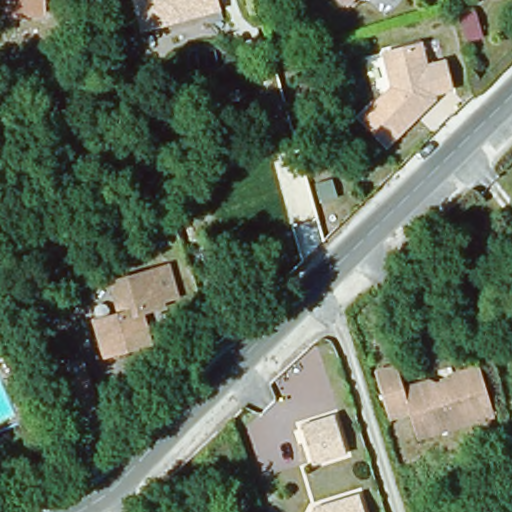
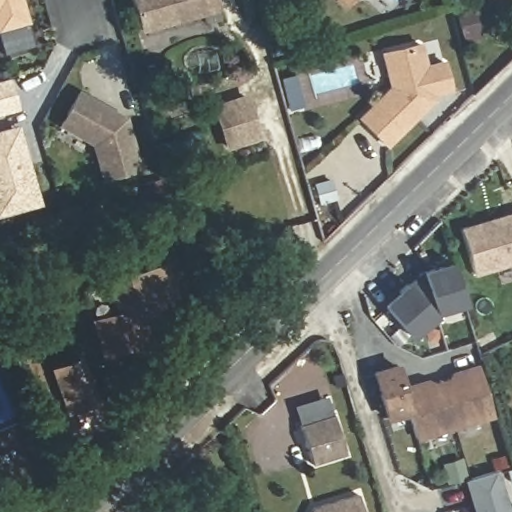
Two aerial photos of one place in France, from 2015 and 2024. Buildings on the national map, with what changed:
demolished [(0,18),(0,0),(43,0),(44,17),(0,18)]
new [(0,29),(0,0),(23,0),(29,21),(0,29)]
unchanged [(141,38),(131,0),(215,0),(219,17),(141,38)]
unchanged [(345,11),(335,0),(353,0),(353,2),(345,11)]
unchanged [(421,45),(425,66),(446,62),(452,93),(435,97),(436,102),(387,148),(359,118),(389,87),(381,52),(421,45)]
new [(19,110),(0,115),(0,80),(9,78),(19,110)]
new [(128,117),(142,170),(102,180),(92,144),(58,125),(79,90),(128,117)]
new [(218,153),(203,107),(248,94),(262,139),(218,153)]
new [(19,125),(42,205),(0,217),(0,130),(19,125)]
new [(512,261),(473,272),(460,227),(512,212),(512,261)]
new [(434,313),(409,284),(424,272),(424,271),(453,262),(464,306),(436,313),(434,313)]
unchanged [(169,265),(181,304),(144,316),(152,348),(104,362),(91,321),(115,313),(107,283),(169,265)]
new [(413,338),(382,305),(406,281),(409,284),(434,313),(437,317),(413,338)]
unchanged [(84,360),(97,403),(71,411),(58,368),(84,360)]
unchanged [(397,367),(404,391),(429,384),(436,387),(452,383),(456,376),(481,368),(495,417),(418,440),(410,412),(390,418),(377,373),(397,367)]
unchanged [(333,418),(343,458),(309,467),(299,427),(333,418)]
new [(498,470),(510,512),(474,512),(466,481),(498,470)]
unchanged [(358,504),(359,512),(326,512),(358,504)]

